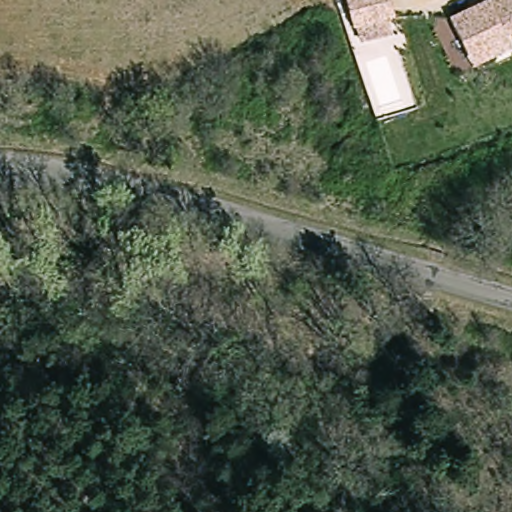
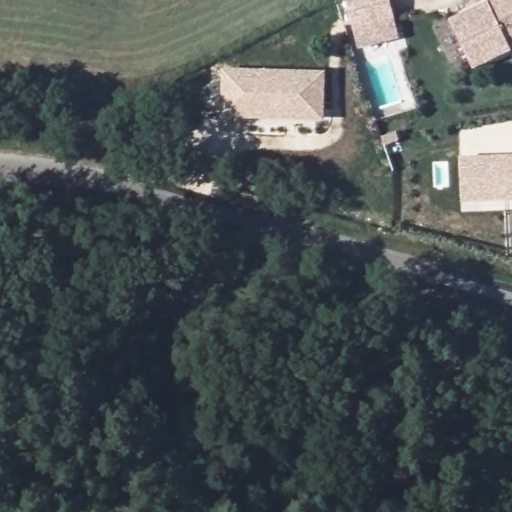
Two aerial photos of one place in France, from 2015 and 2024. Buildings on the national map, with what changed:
new [(399,38),(358,49),(353,31),(343,0),(389,0),(394,21),(399,38)]
demolished [(395,22),(362,32),(351,0),(389,0),(395,22)]
unchanged [(470,58),(452,22),(496,0),(512,0),(512,42),(510,43),(512,46),(512,51),(476,70),(470,58)]
new [(326,72),(324,121),(220,120),(222,69),(326,72)]
new [(460,156),(512,154),(512,199),(461,201),(460,156)]

